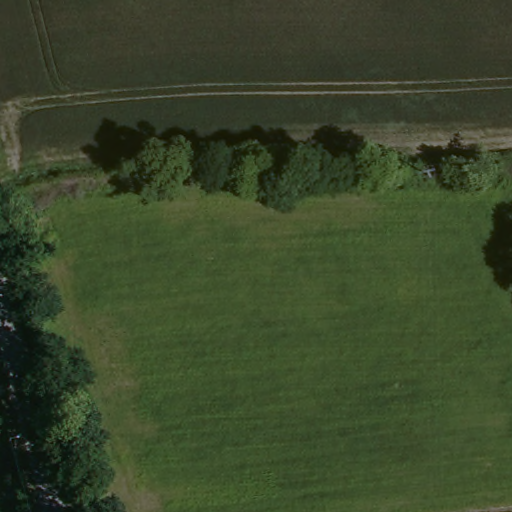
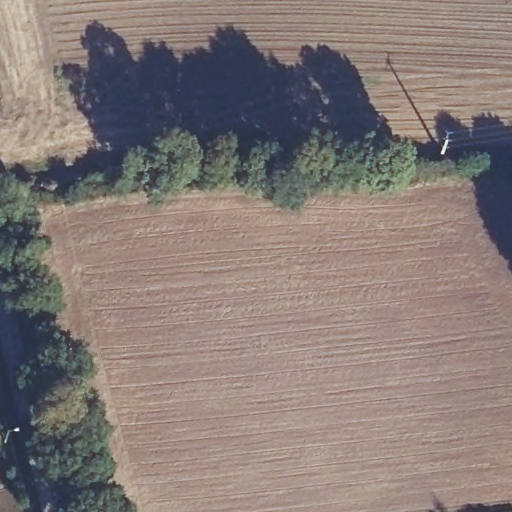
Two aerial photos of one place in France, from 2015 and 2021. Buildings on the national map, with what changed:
unchanged [(2,388),(0,389),(0,381),(2,388)]

